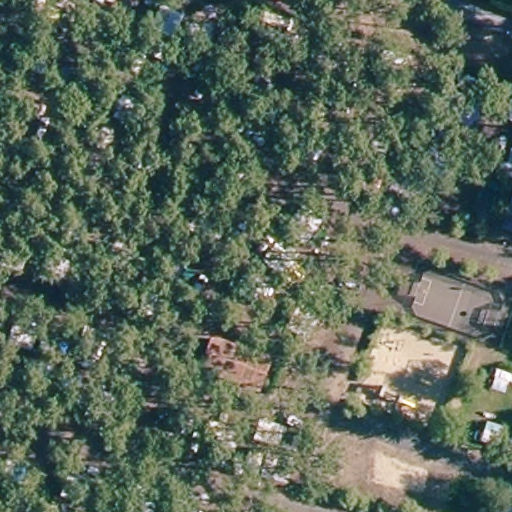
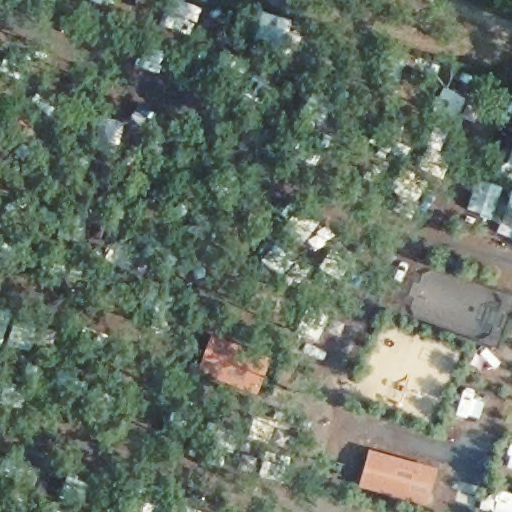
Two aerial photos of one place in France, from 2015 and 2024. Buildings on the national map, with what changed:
unchanged [(270,360),(259,389),(203,368),(212,340),(270,360)]
new [(362,485),(372,456),(434,477),(425,506),(380,491),(374,489),(362,485)]

